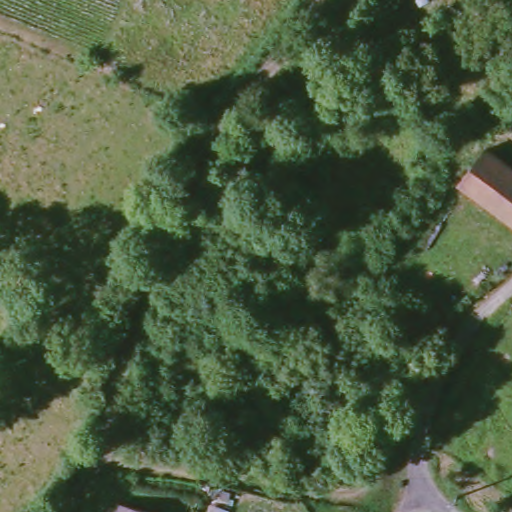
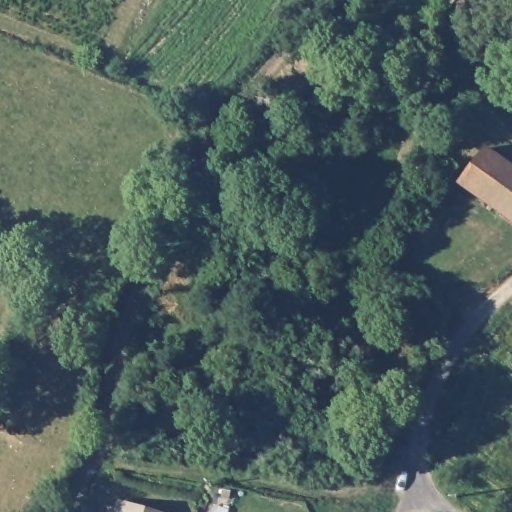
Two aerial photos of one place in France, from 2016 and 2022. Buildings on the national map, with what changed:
unchanged [(450,0),(465,12),(440,41),(426,31),(450,0)]
unchanged [(495,151),(512,163),(512,220),(461,186),(474,168),(489,148),(495,151)]
unchanged [(169,512),(125,512),(128,500),(169,512)]

